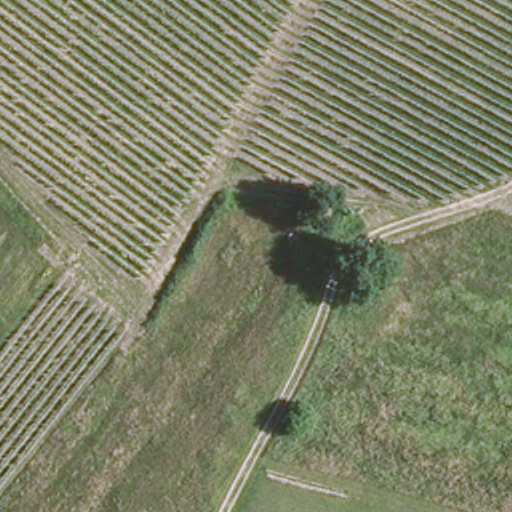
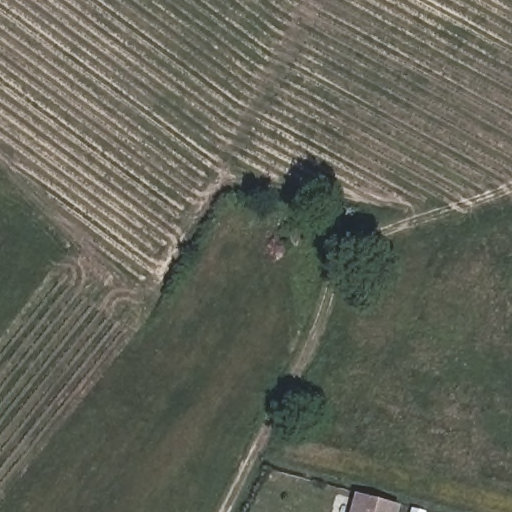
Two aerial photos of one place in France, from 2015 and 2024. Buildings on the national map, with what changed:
new [(355,493),(400,504),(398,512),(349,512),(355,493)]

